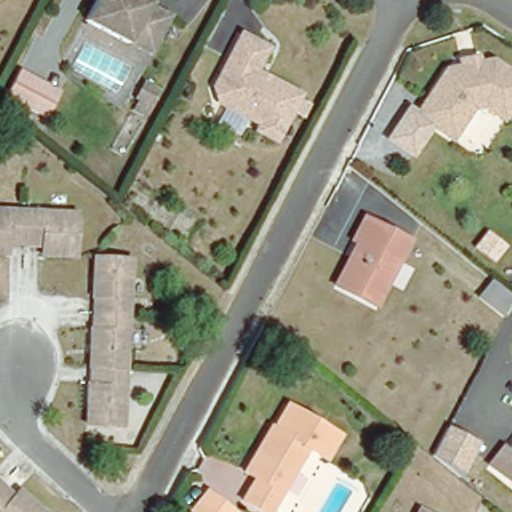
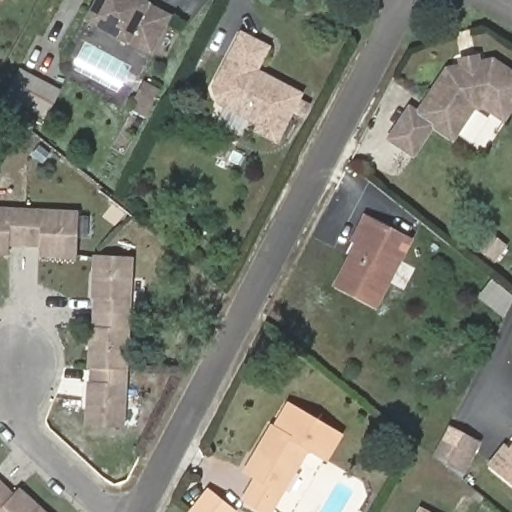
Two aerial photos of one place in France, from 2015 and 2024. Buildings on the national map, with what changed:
unchanged [(0,2),(0,0),(2,0),(0,2)]
unchanged [(146,4),(147,5),(168,16),(147,57),(125,46),(121,46),(81,25),(94,0),(140,0),(146,4)]
unchanged [(266,46),(254,70),(256,71),(253,75),(264,80),(266,76),(300,92),(276,139),(258,130),(261,123),(220,104),(213,87),(240,33),(266,46)]
unchanged [(417,109),(443,70),(490,62),(512,76),(512,112),(504,124),(486,112),(466,116),(451,141),(434,131),(412,117),(417,109)]
unchanged [(46,117),(6,97),(21,67),(63,89),(46,117)]
unchanged [(408,104),(417,109),(412,117),(434,131),(414,159),(385,140),(408,104)]
unchanged [(68,250),(66,250),(44,249),(42,249),(42,242),(34,242),(27,241),(19,241),(18,241),(5,240),(1,240),(0,239),(0,203),(20,204),(71,207),(68,250)]
unchanged [(410,244),(370,308),(331,285),(358,244),(353,240),(359,233),(367,218),(410,244)]
unchanged [(121,423),(85,420),(87,378),(87,373),(88,365),(91,309),(91,305),(92,284),(92,280),(93,259),(93,256),(131,259),(128,312),(125,368),(121,423)]
unchanged [(512,286),(512,312),(488,295),(501,278),(512,286)]
unchanged [(253,480),(240,472),(269,421),(272,423),(285,402),(335,430),(319,455),(305,447),(265,512),(242,499),(253,480)]
unchanged [(477,440),(459,475),(433,455),(448,426),(477,440)]
unchanged [(504,453),(508,456),(512,451),(512,486),(491,471),(504,453)]
unchanged [(13,489),(18,485),(21,487),(27,493),(44,507),(50,512),(0,512),(0,479),(1,480),(13,489)]
unchanged [(207,487),(228,504),(223,512),(194,512),(190,509),(207,487)]
unchanged [(425,512),(417,512),(419,509),(425,512)]

